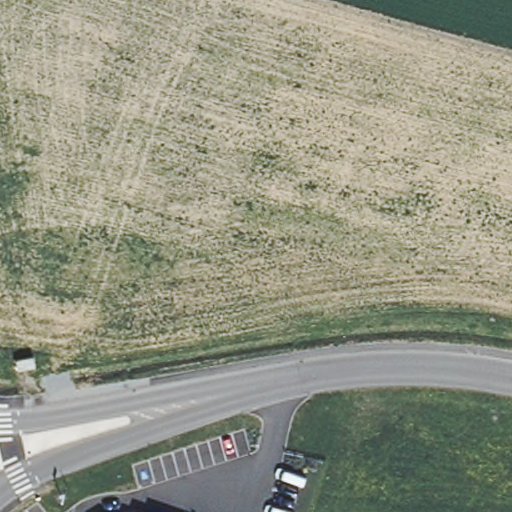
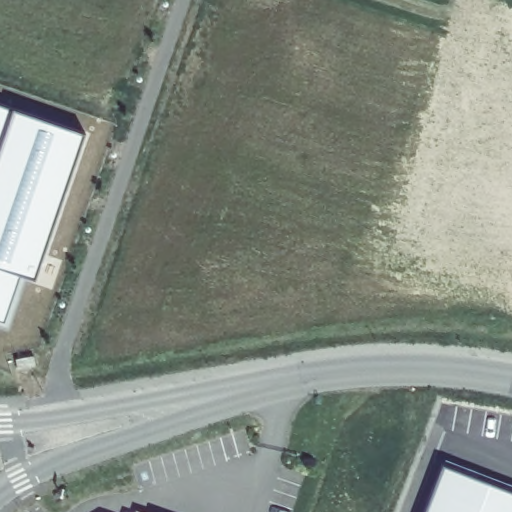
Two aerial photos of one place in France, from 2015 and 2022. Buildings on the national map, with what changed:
new [(36,282),(21,278),(5,324),(0,322),(0,108),(84,138),(36,282)]
new [(33,349),(36,369),(16,372),(13,352),(33,349)]
new [(512,492),(512,512),(426,512),(443,467),(512,492)]

